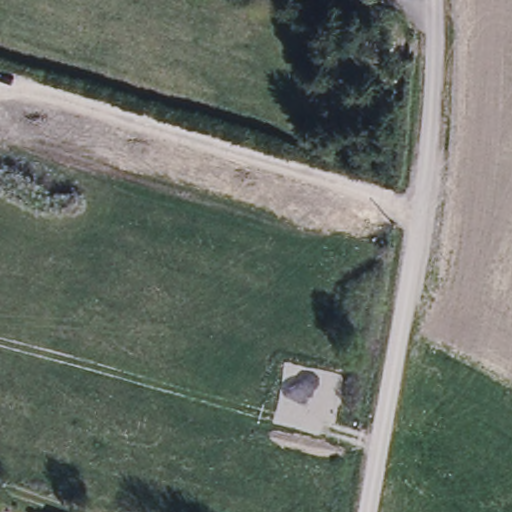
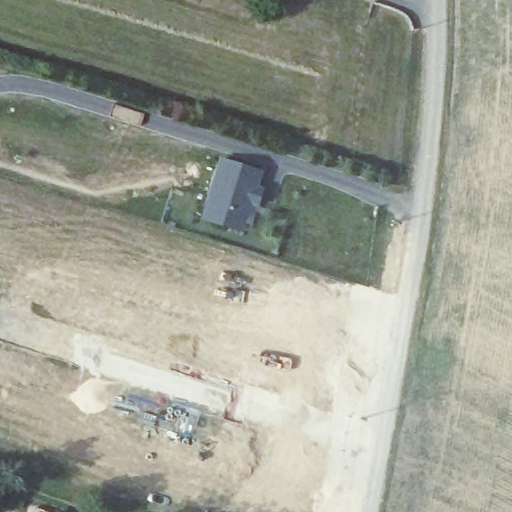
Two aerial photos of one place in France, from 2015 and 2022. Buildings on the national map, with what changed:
new [(263,171),(258,187),(264,189),(259,208),(251,207),(243,233),(201,220),(219,158),(263,171)]

